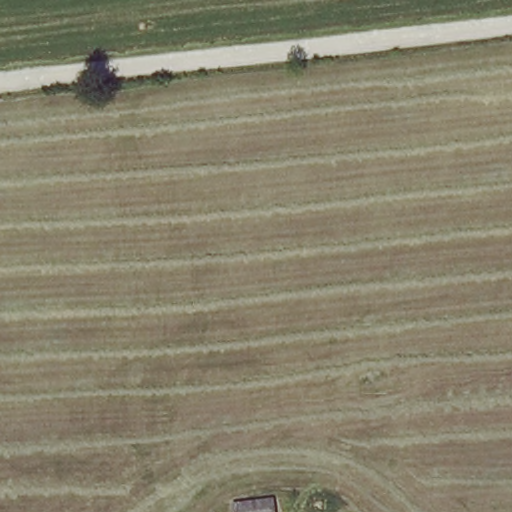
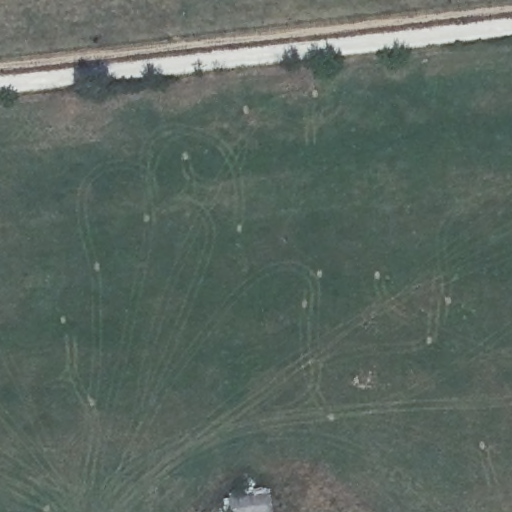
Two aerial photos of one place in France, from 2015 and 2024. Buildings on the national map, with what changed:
unchanged [(227,500),(268,496),(270,512),(229,512),(227,500)]

